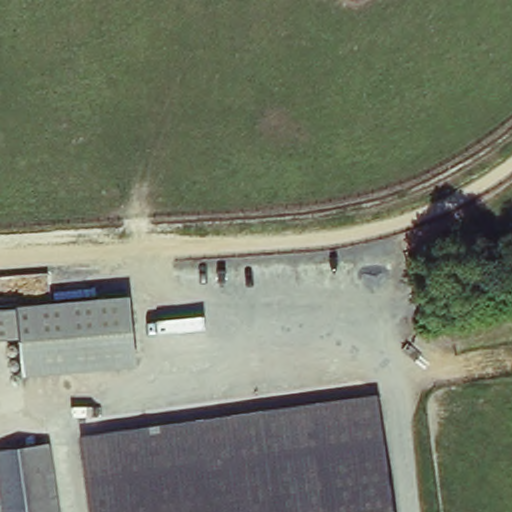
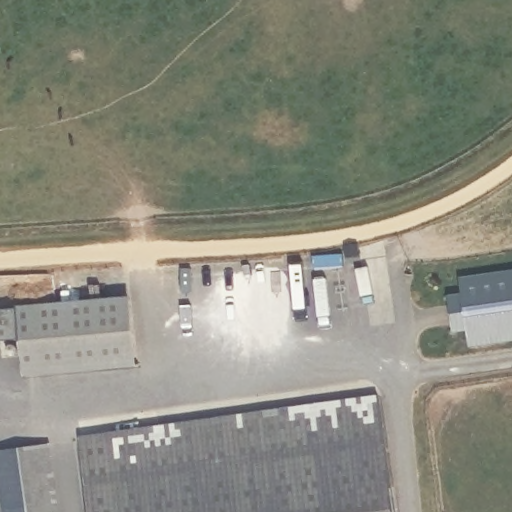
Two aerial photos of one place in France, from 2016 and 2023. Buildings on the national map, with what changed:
new [(455,325),(450,290),(465,289),(462,272),(512,266),(512,338),(471,344),(467,324),(455,325)]
unchanged [(25,377),(22,383),(16,386),(12,383),(10,378),(9,365),(7,340),(0,341),(0,310),(19,307),(130,296),(138,366),(25,377)]
unchanged [(376,392),(394,512),(87,512),(76,434),(376,392)]
unchanged [(60,512),(0,512),(0,448),(51,440),(60,512)]

